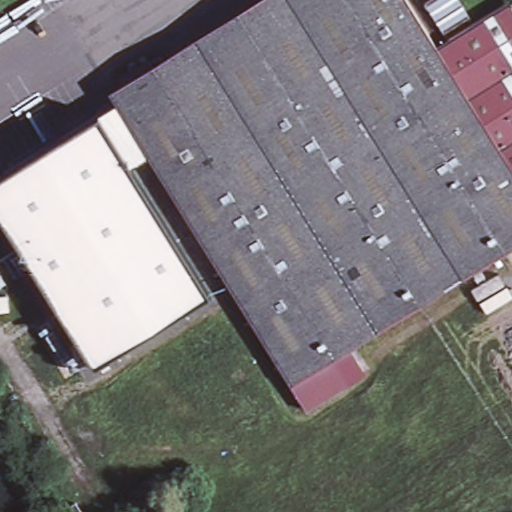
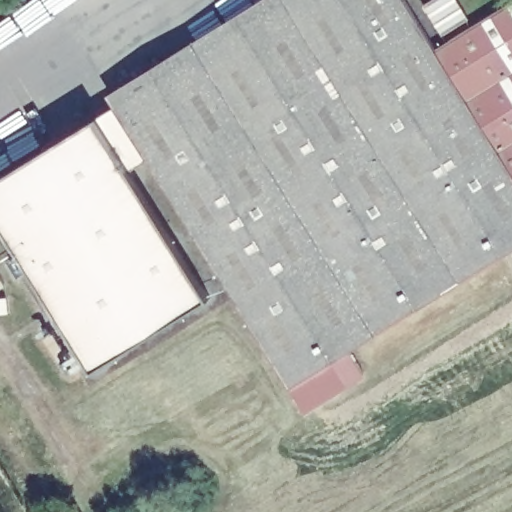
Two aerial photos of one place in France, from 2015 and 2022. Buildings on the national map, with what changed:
unchanged [(512,4),(512,250),(325,365),(342,389),(309,408),(152,157),(119,104),(207,50),(288,0),(412,0),(442,46),(512,4)]
unchanged [(464,0),(475,16),(451,31),(432,2),(436,0),(464,0)]
unchanged [(113,95),(200,41),(207,50),(119,104),(113,95)]
unchanged [(135,168),(215,295),(96,368),(0,214),(0,177),(119,104),(152,157),(135,168)]
unchanged [(82,504),(87,512),(69,512),(82,504)]

